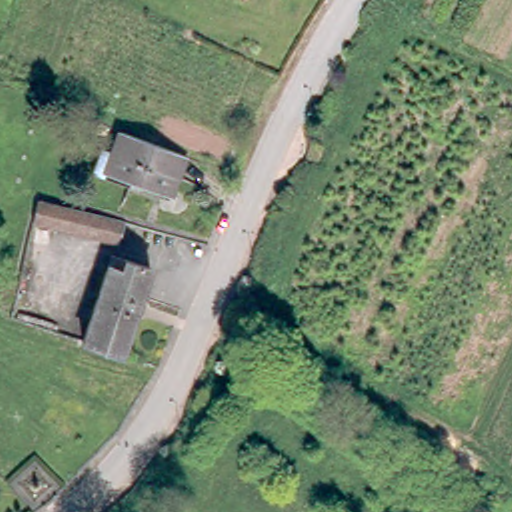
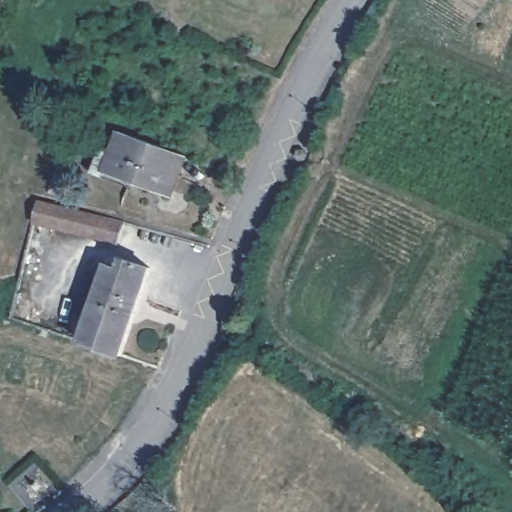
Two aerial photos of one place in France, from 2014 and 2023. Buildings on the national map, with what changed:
unchanged [(185,155),(184,156),(170,196),(131,182),(129,187),(91,173),(100,148),(113,153),(120,132),(185,155)]
unchanged [(31,223),(36,200),(125,221),(117,243),(31,223)]
unchanged [(151,268),(120,356),(93,347),(81,343),(112,254),(151,268)]
unchanged [(22,308),(13,306),(16,289),(25,291),(22,308)]

